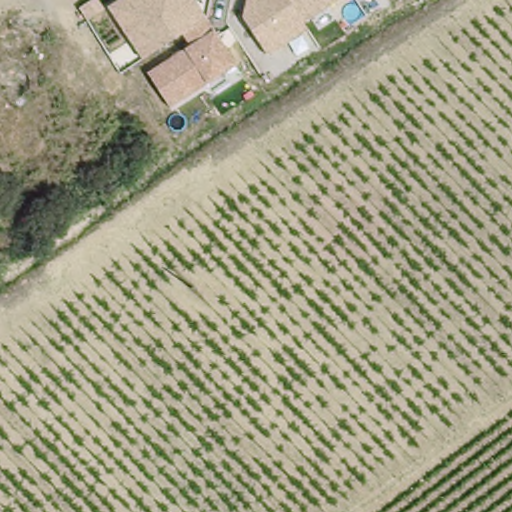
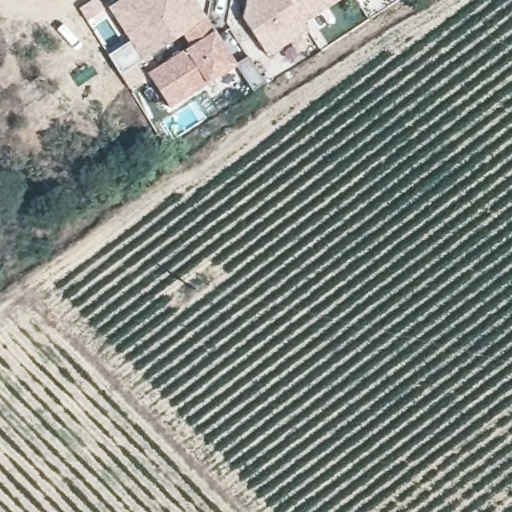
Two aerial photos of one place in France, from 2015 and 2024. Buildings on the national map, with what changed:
unchanged [(148,73),(190,44),(182,33),(143,58),(110,9),(122,0),(195,0),(205,17),(215,31),(237,64),(170,106),(148,73)]
unchanged [(242,14),(247,0),(338,0),(302,23),(307,30),(268,54),(242,14)]

